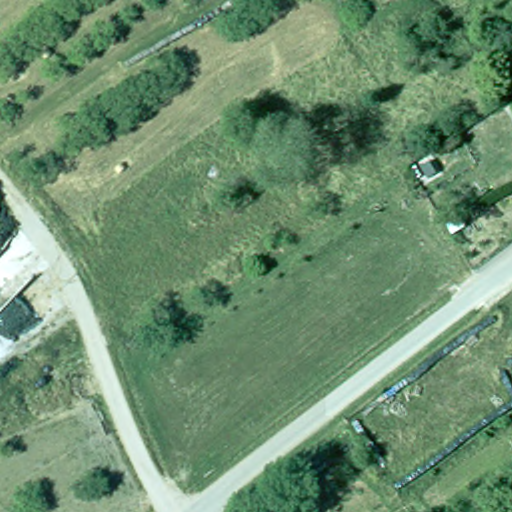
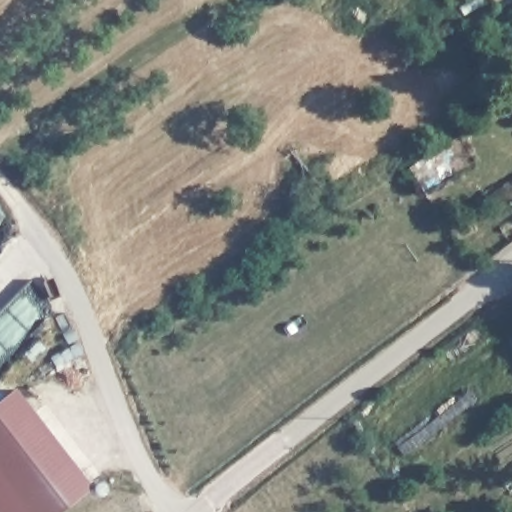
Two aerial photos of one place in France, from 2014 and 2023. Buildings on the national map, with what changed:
new [(89,482),(51,512),(0,512),(0,398),(15,387),(89,482)]

